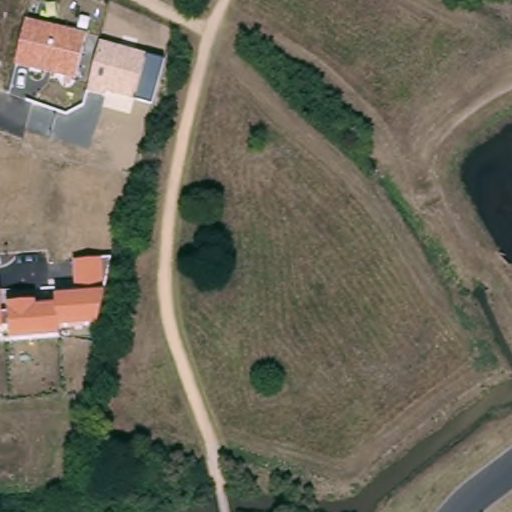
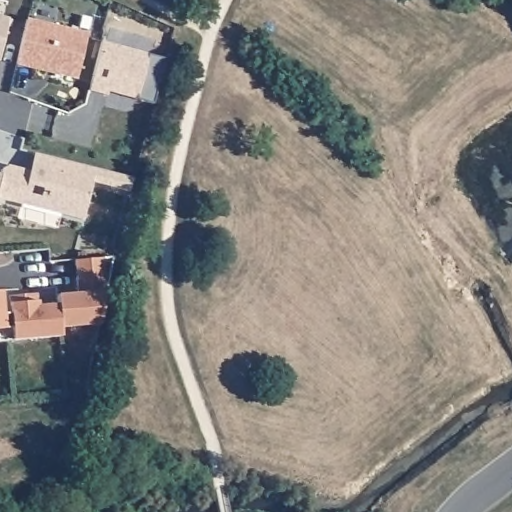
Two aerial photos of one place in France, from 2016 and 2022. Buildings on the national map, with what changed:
new [(0,45),(0,13),(7,15),(0,45)]
unchanged [(25,20),(86,34),(75,79),(14,65),(25,20)]
unchanged [(100,42),(165,59),(152,104),(107,91),(106,97),(87,91),(100,42)]
new [(0,175),(2,168),(6,165),(29,170),(34,154),(132,178),(129,192),(90,182),(81,222),(0,200),(0,175)]
unchanged [(3,305),(36,302),(36,306),(55,305),(55,296),(76,294),(74,262),(112,258),(106,290),(100,324),(60,328),(61,337),(12,340),(0,342),(0,291),(1,291),(3,305)]

